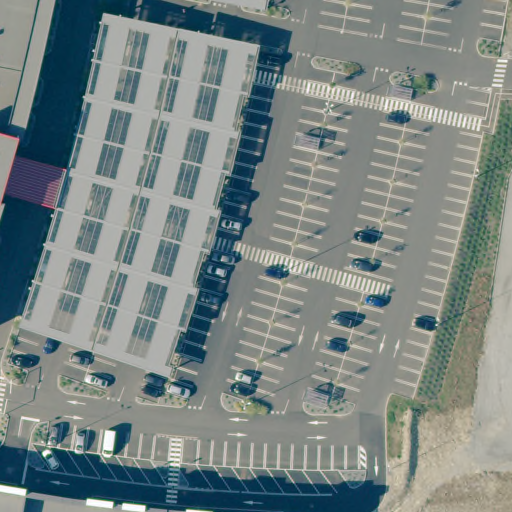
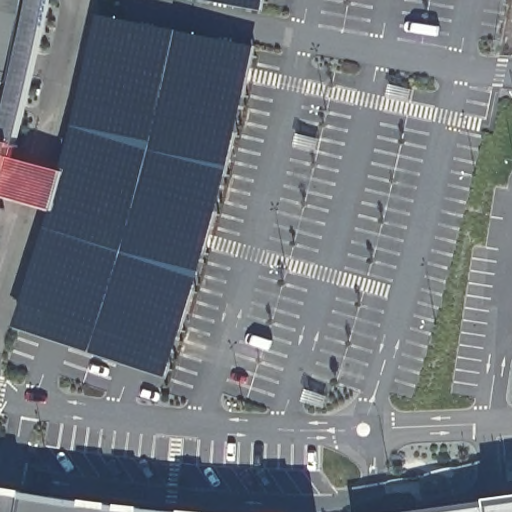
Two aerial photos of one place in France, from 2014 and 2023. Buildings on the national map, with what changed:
unchanged [(46,38),(30,105),(21,148),(17,146),(0,206),(0,0),(53,0),(46,38)]
unchanged [(4,211),(0,221),(0,209),(4,211)]
unchanged [(150,512),(0,512),(0,491),(25,495),(150,512)]
new [(512,499),(512,512),(422,512),(491,502),(512,499)]

